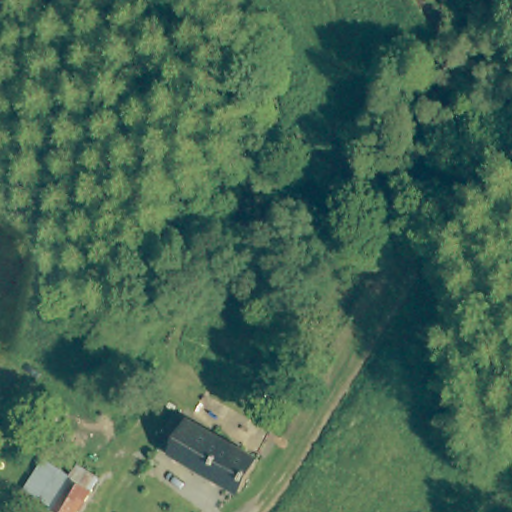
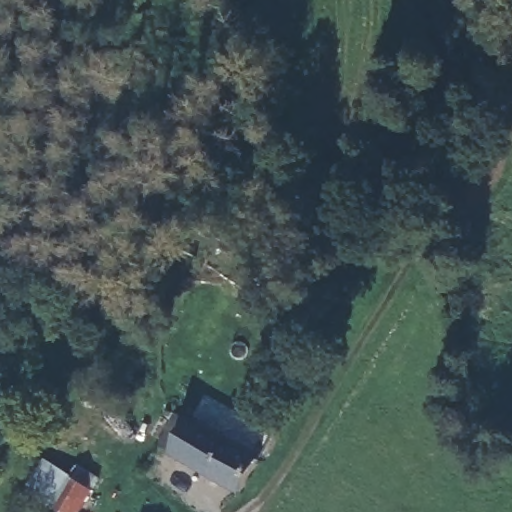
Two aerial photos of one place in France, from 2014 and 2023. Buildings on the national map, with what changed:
unchanged [(162,453),(169,440),(184,447),(195,427),(264,467),(244,502),(162,453)]
unchanged [(76,463),(100,479),(81,512),(55,512),(23,491),(41,462),(67,478),(76,463)]

